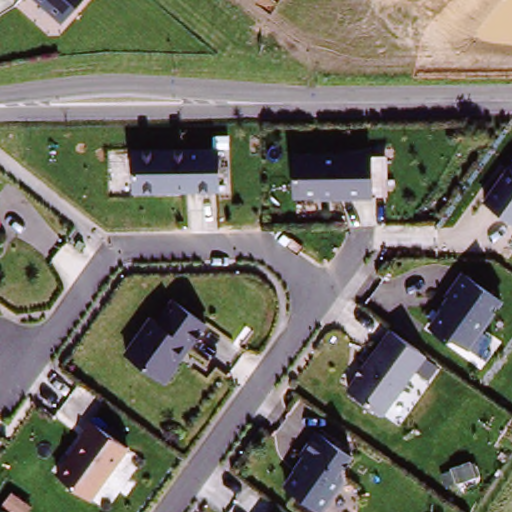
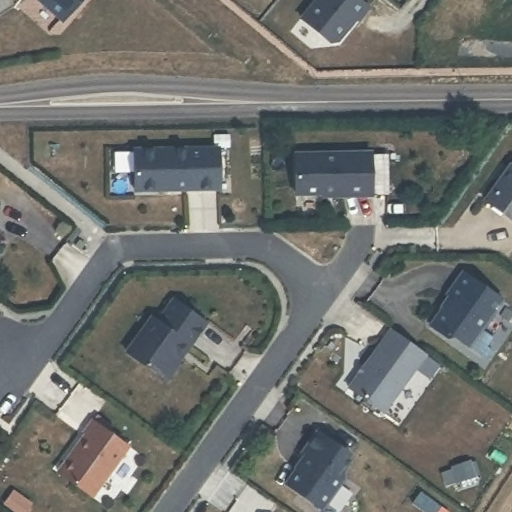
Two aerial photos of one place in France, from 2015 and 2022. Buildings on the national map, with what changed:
unchanged [(70,17),(51,0),(85,0),(70,17)]
new [(316,0),(357,0),(368,10),(357,22),(355,20),(337,42),(329,44),(300,20),(316,0)]
unchanged [(224,141),(227,184),(142,187),(139,145),(224,141)]
unchanged [(380,147),(383,192),(351,194),(351,191),(307,193),(304,151),(380,147)]
unchanged [(509,175),(512,175),(512,209),(495,195),(509,175)]
unchanged [(0,247),(0,239),(2,246),(0,247)]
unchanged [(35,241),(41,245),(37,251),(32,247),(35,241)]
unchanged [(498,312),(500,313),(490,327),(489,326),(476,343),(458,328),(456,332),(437,318),(456,290),(452,287),(467,265),(509,298),(498,312)]
unchanged [(202,345),(199,343),(189,357),(191,364),(182,376),(176,378),(139,352),(162,316),(169,321),(184,298),(217,321),(202,345)]
unchanged [(434,352),(432,355),(394,412),(357,387),(396,328),(397,327),(434,352)]
unchanged [(136,447),(102,498),(67,475),(77,458),(80,460),(85,452),(82,451),(92,435),(90,435),(99,422),(136,447)]
unchanged [(322,425),(358,450),(349,463),(351,472),(329,504),(294,480),(304,465),(307,465),(310,460),(310,456),(312,452),(307,448),(322,425)]

